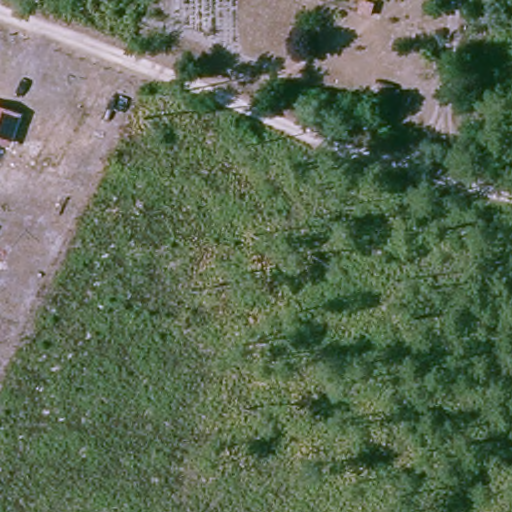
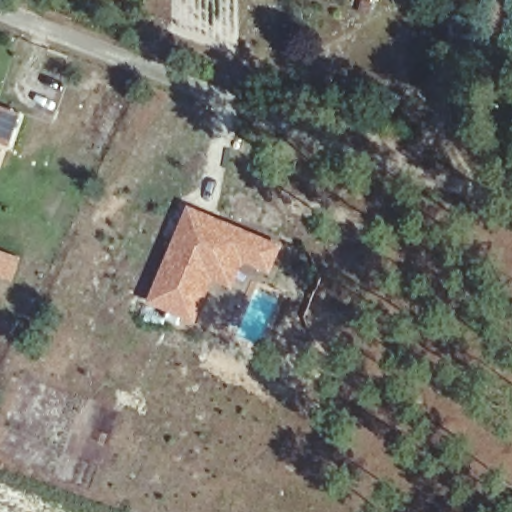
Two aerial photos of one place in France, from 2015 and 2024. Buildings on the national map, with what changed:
unchanged [(6,140),(0,138),(0,108),(16,113),(6,140)]
new [(172,242),(190,205),(283,245),(271,276),(244,265),(232,291),(215,284),(197,326),(147,304),(172,242)]
new [(0,275),(0,255),(14,261),(6,278),(0,275)]

